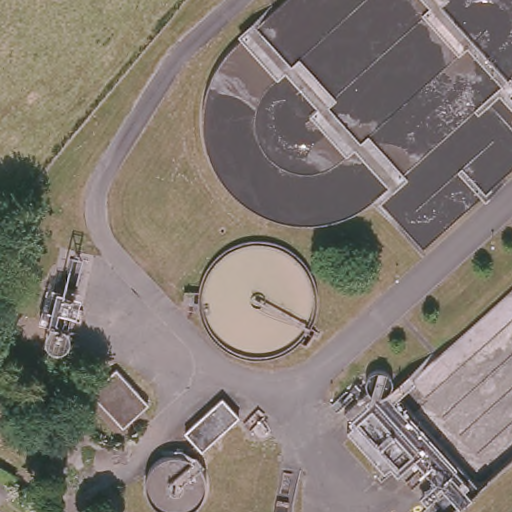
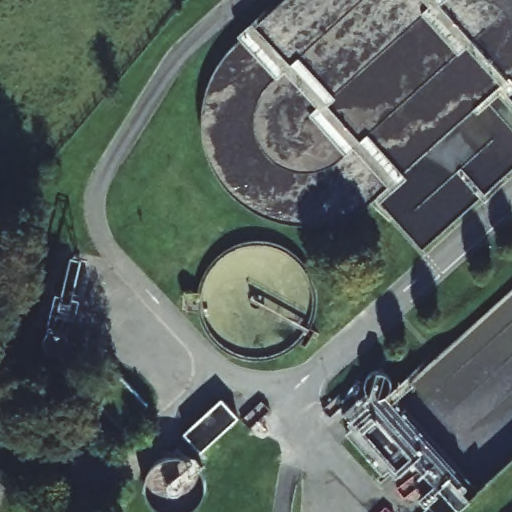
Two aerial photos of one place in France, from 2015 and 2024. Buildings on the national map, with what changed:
unchanged [(84,295),(72,351),(45,344),(56,289),(84,295)]
unchanged [(121,427),(90,393),(115,369),(146,404),(121,427)]
unchanged [(418,501),(432,488),(410,462),(395,475),(387,468),(380,475),(340,434),(348,427),(338,414),(360,394),(359,393),(358,389),(357,386),(358,385),(360,381),(362,378),(365,376),(370,374),(373,374),(377,376),(380,378),(383,382),(385,386),(385,389),(383,394),(381,397),(385,402),(467,495),(448,512),(421,512),(425,509),(418,501)]
unchanged [(221,399),(237,417),(200,452),(185,432),(221,399)]

